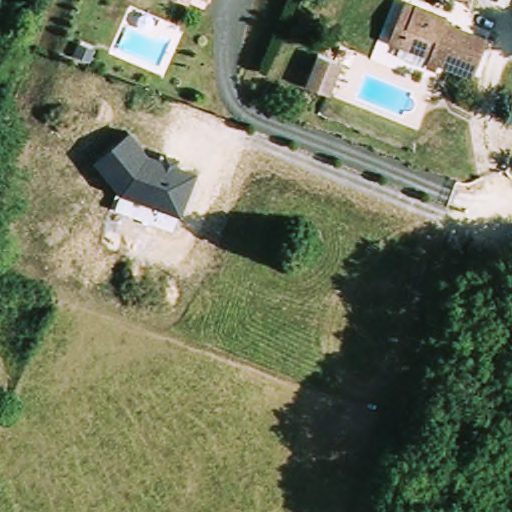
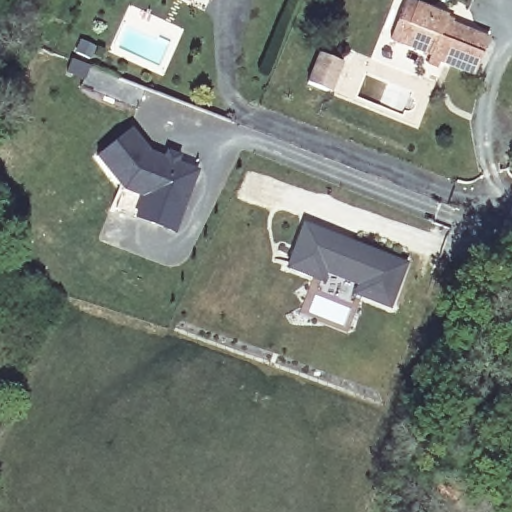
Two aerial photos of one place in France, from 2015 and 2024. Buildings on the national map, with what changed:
unchanged [(177,0),(192,0),(189,5),(177,0)]
unchanged [(208,1),(205,0),(209,0),(208,1)]
unchanged [(447,26),(491,44),(477,78),(432,60),(434,56),(393,40),(406,6),(448,22),(447,26)]
demolished [(512,10),(512,30),(505,27),(512,10)]
unchanged [(58,50),(70,57),(64,68),(52,61),(58,50)]
new [(329,90),(324,88),(305,80),(315,54),(333,61),(338,63),(329,90)]
demolished [(313,100),(294,92),(304,66),(322,73),(313,100)]
unchanged [(131,128),(149,152),(200,169),(183,211),(118,187),(93,158),(131,128)]
new [(302,222),(407,263),(389,310),(352,295),(356,286),(325,274),(322,283),(285,268),(302,222)]

